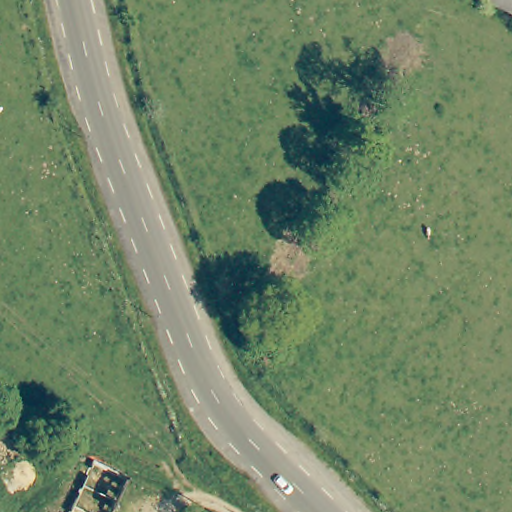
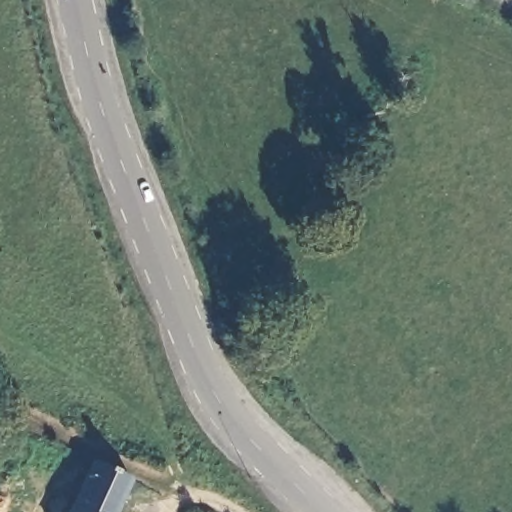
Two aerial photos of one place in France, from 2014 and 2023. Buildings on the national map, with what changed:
unchanged [(512,17),(476,0),(512,0),(512,17)]
new [(132,473),(112,512),(69,512),(97,456),(132,473)]

